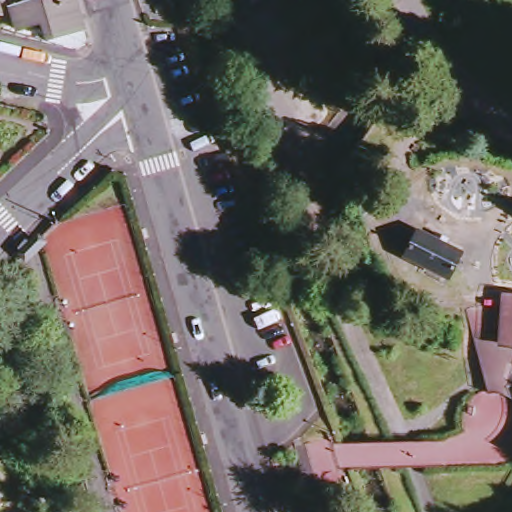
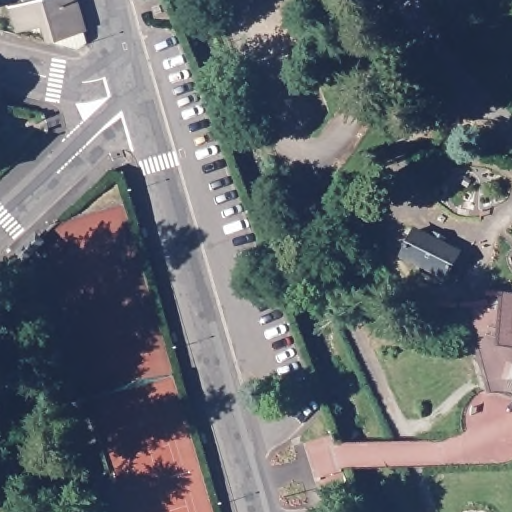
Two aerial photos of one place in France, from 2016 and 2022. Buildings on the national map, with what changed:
unchanged [(13,0),(16,10),(0,6),(0,0),(13,0)]
unchanged [(80,54),(55,47),(46,27),(22,32),(16,10),(27,6),(48,0),(77,0),(90,44),(80,54)]
unchanged [(25,0),(48,0),(27,6),(25,0)]
unchanged [(250,0),(252,0),(250,1),(250,0)]
unchanged [(477,290),(400,249),(410,229),(445,249),(447,242),(490,265),(477,290)]
unchanged [(474,315),(504,311),(507,292),(512,294),(512,403),(490,393),(474,315)]
unchanged [(1,487),(0,488),(0,486),(1,487)]

